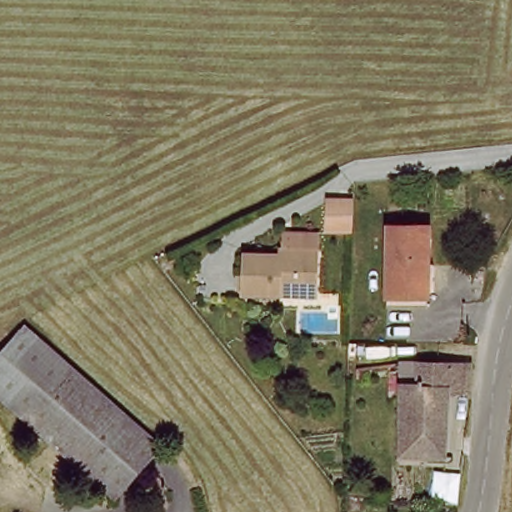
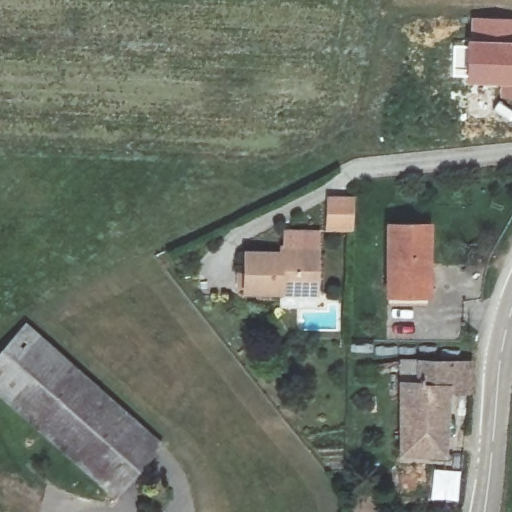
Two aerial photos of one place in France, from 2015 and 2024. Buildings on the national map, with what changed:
new [(469,38),(470,16),(512,18),(512,40),(467,38),(469,38)]
new [(452,44),(466,44),(467,38),(512,40),(512,98),(499,98),(499,84),(464,82),(464,76),(451,75),(452,44)]
unchanged [(387,227),(432,227),(430,296),(385,295),(387,227)]
unchanged [(319,248),(318,287),(282,287),(282,292),(245,293),(245,254),(281,254),(281,248),(319,248)]
unchanged [(120,491),(5,405),(0,401),(0,356),(17,334),(25,325),(30,328),(54,346),(168,432),(120,491)]
unchanged [(447,447),(402,449),(403,388),(398,360),(470,359),(467,388),(450,389),(449,407),(447,447)]
unchanged [(467,460),(454,459),(455,446),(468,446),(467,460)]

